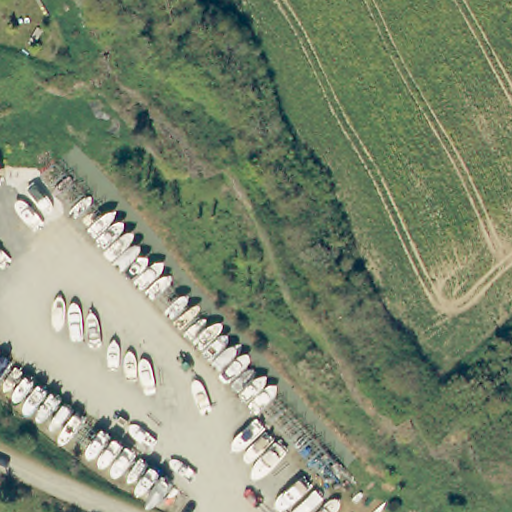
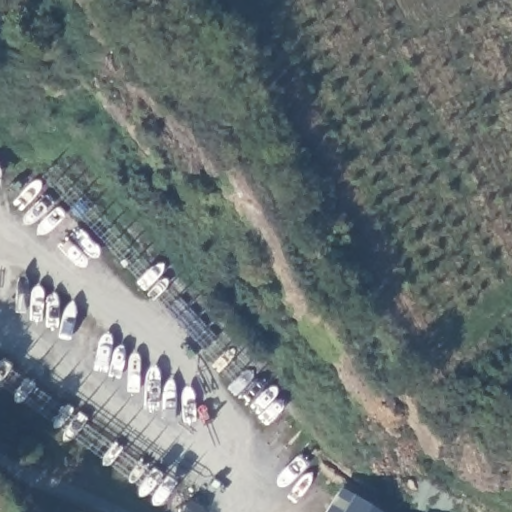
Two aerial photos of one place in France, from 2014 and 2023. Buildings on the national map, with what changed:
new [(342,485),(383,512),(325,512),(342,485)]

